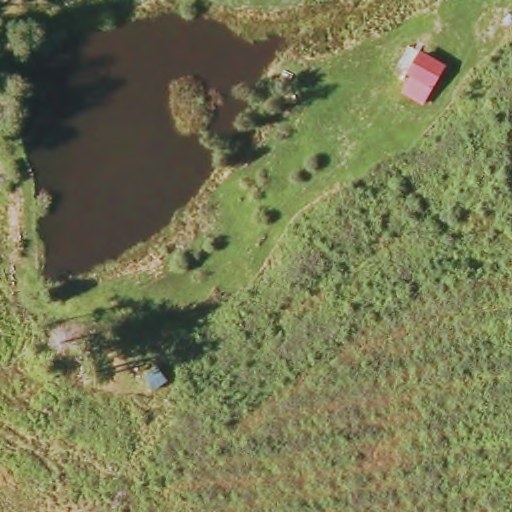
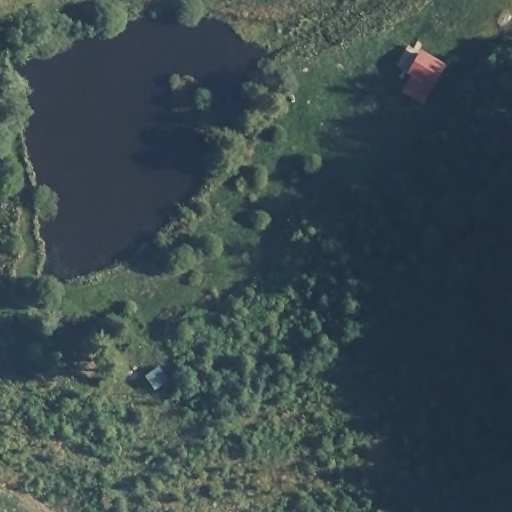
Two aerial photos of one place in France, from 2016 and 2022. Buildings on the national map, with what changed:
unchanged [(411,76),(407,74),(420,51),(445,65),(432,89),(423,105),(402,93),(411,76)]

